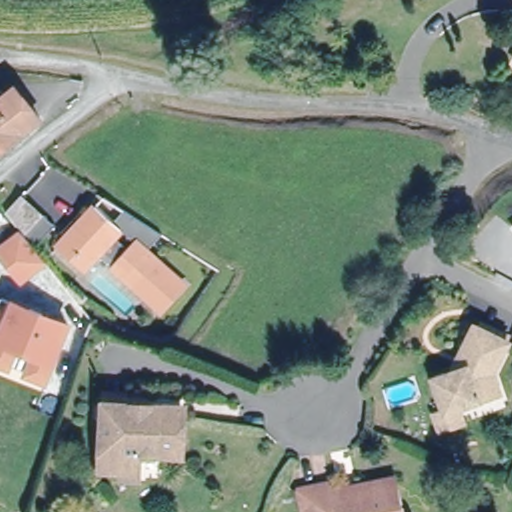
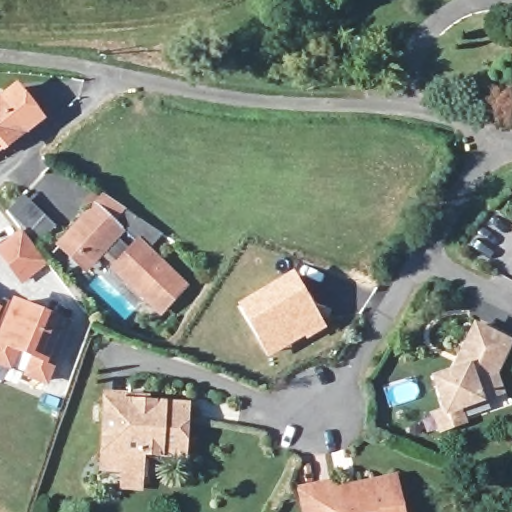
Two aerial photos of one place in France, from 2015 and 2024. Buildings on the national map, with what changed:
unchanged [(7,100),(30,130),(0,149),(0,105),(7,100)]
unchanged [(0,247),(0,241),(20,225),(17,220),(8,209),(25,194),(36,204),(48,215),(59,225),(38,249),(43,255),(20,273),(0,247)]
unchanged [(146,251),(185,284),(162,310),(115,271),(118,265),(102,252),(90,267),(62,245),(95,208),(110,221),(119,209),(160,235),(146,251)]
new [(292,271),(327,328),(268,358),(236,305),(292,271)]
unchanged [(12,303),(66,324),(44,380),(27,373),(34,354),(16,347),(8,366),(0,362),(0,335),(12,303)]
unchanged [(438,375),(443,385),(469,375),(488,338),(512,348),(512,362),(501,383),(506,398),(454,417),(447,398),(429,403),(421,379),(438,375)]
unchanged [(125,470),(98,471),(102,407),(104,394),(131,395),(130,407),(183,410),(181,457),(142,458),(141,472),(125,470)]
unchanged [(301,492),(327,486),(330,496),(369,487),(369,483),(390,478),(398,512),(305,512),(301,492)]

